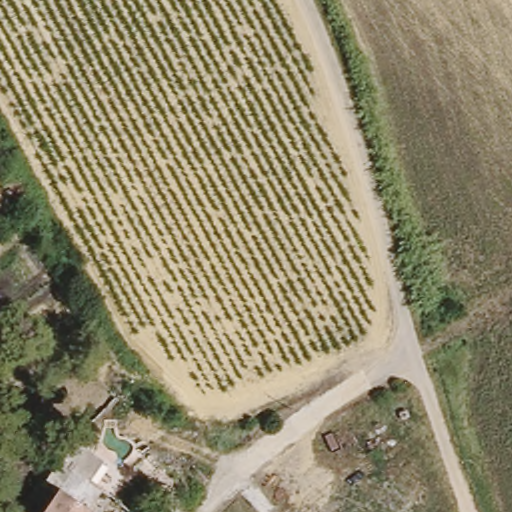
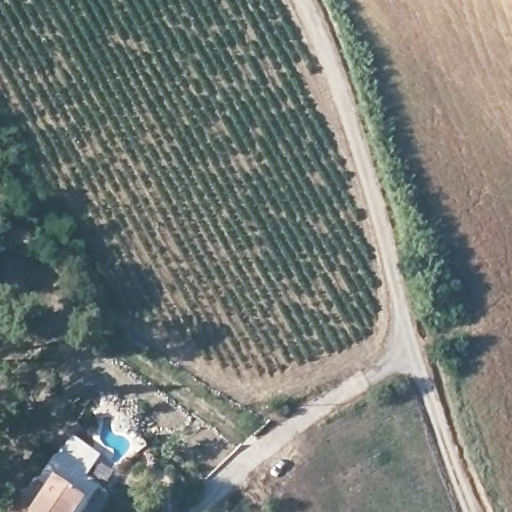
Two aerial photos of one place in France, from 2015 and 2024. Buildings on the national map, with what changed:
unchanged [(40,481),(55,462),(89,482),(75,502),(69,512),(16,512),(40,481)]

